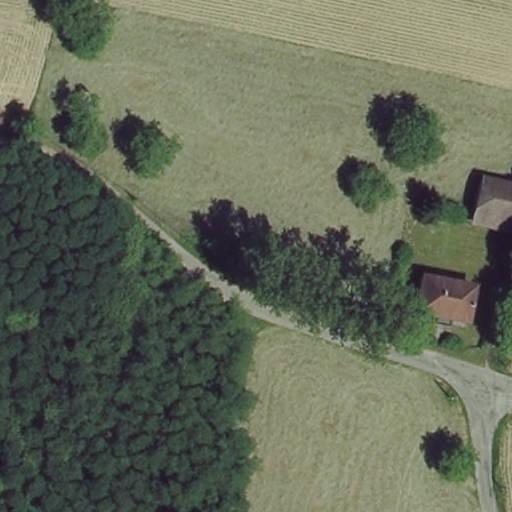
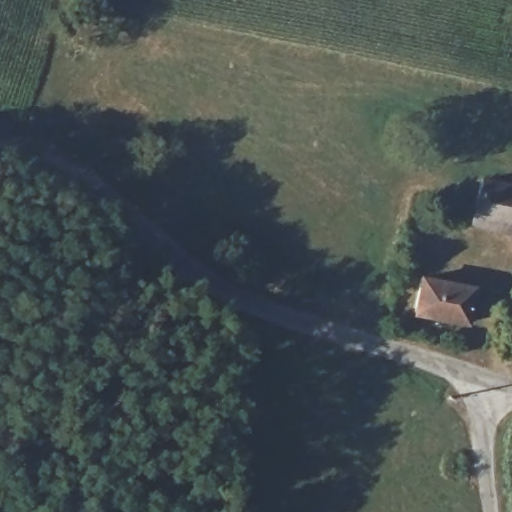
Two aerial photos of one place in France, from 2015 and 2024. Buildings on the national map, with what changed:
unchanged [(477,227),(484,192),(512,197),(512,232),(477,227)]
unchanged [(414,268),(484,285),(473,334),(406,321),(414,268)]

